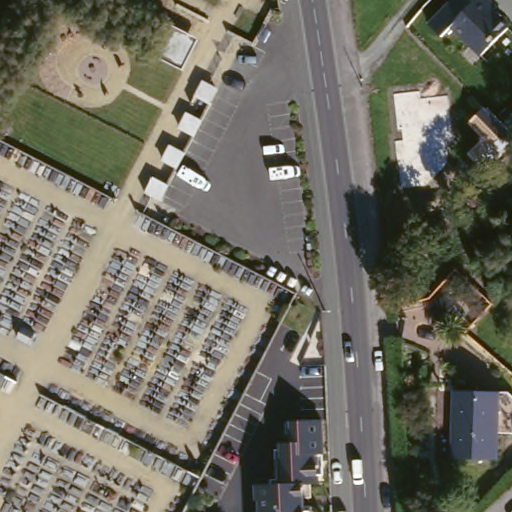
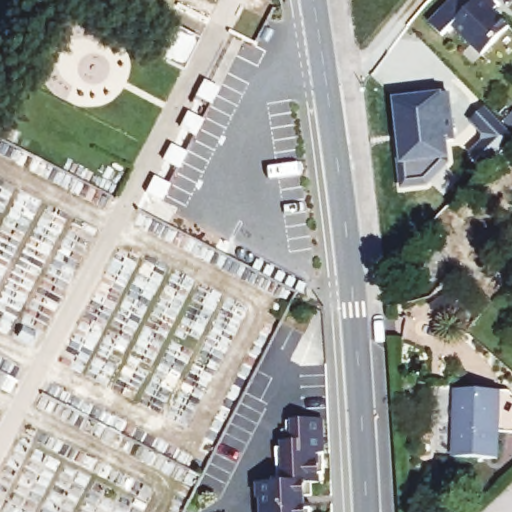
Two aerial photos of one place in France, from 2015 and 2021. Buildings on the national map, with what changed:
unchanged [(451,30),(441,40),(429,27),(457,0),(476,0),(478,2),(480,0),(485,0),(496,12),(492,16),(508,32),(480,60),(451,30)]
unchanged [(180,74),(149,57),(165,25),(197,42),(180,74)]
new [(417,88),(418,96),(445,92),(452,138),(444,140),(446,155),(445,155),(446,160),(427,184),(402,187),(398,163),(397,163),(394,139),(402,138),(400,127),(396,127),(391,92),(417,88)]
new [(480,133),(469,122),(484,107),(512,134),(512,138),(483,167),(468,152),(479,141),(480,133)]
unchanged [(190,140),(174,132),(183,116),(199,124),(190,140)]
unchanged [(173,172),(157,164),(166,147),(182,156),(173,172)]
unchanged [(156,204),(140,195),(149,179),(165,187),(156,204)]
unchanged [(494,396),(493,465),(452,462),(451,396),(494,396)]
unchanged [(256,498),(255,483),(269,483),(269,478),(280,477),(278,442),(289,442),(287,421),(316,418),(318,451),(310,452),(312,482),(298,482),(299,503),(305,503),(306,512),(260,512),(259,498),(256,498)]

